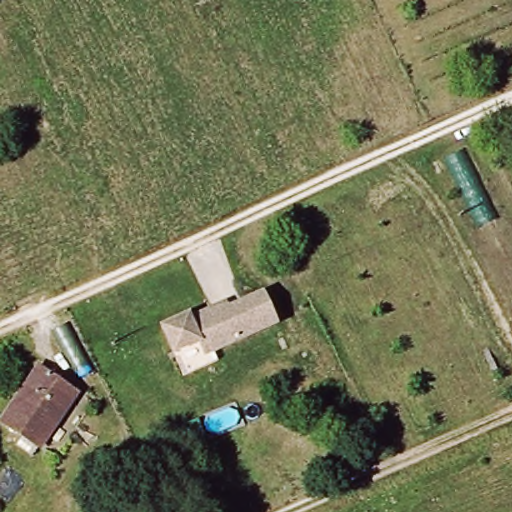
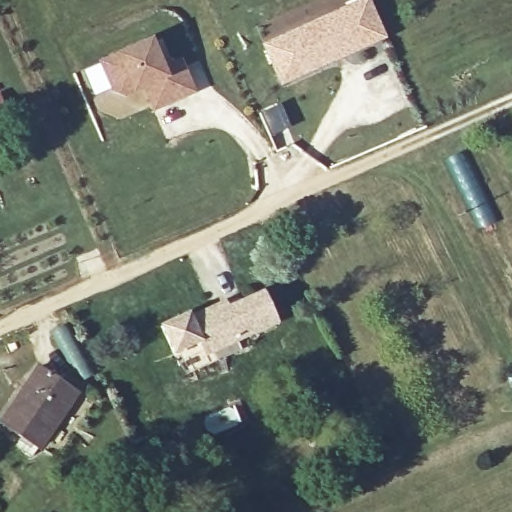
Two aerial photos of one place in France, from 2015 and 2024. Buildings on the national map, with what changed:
new [(366,0),(368,0),(385,37),(280,84),(264,46),(366,0)]
new [(150,37),(161,65),(179,57),(193,89),(145,110),(134,86),(112,86),(100,59),(150,37)]
unchanged [(205,356),(197,345),(172,353),(160,322),(191,310),(193,314),(265,287),(280,323),(205,356)]
unchanged [(0,426),(36,375),(71,398),(33,453),(0,430),(0,426)]

